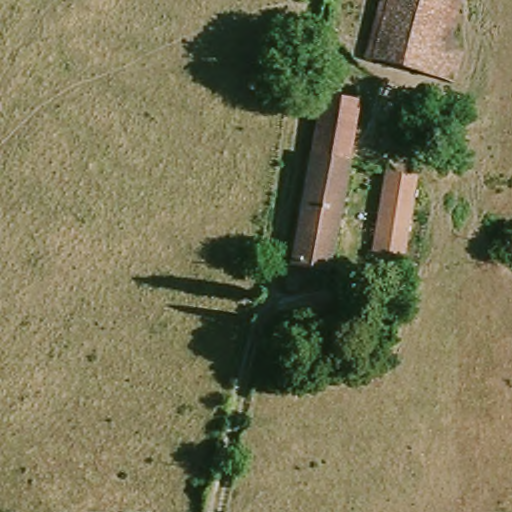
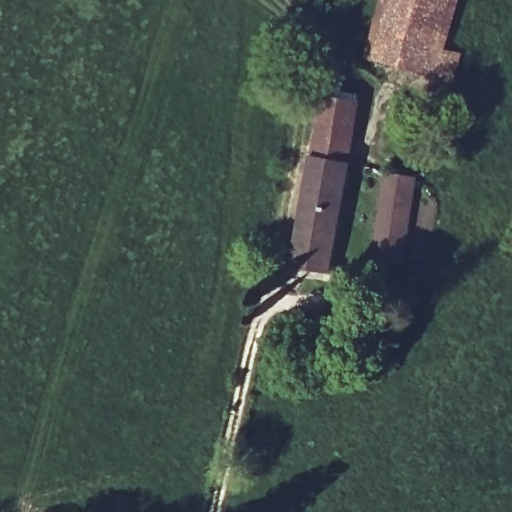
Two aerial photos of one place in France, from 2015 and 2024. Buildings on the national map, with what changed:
unchanged [(396,0),(470,0),(460,40),(475,45),(464,79),(381,51),(396,0)]
unchanged [(328,93),(371,100),(360,159),(320,153),(328,93)]
unchanged [(413,123),(434,126),(430,150),(409,146),(413,123)]
unchanged [(343,268),(301,264),(320,153),(360,159),(343,268)]
unchanged [(430,170),(415,258),(403,257),(400,273),(368,269),(375,240),(391,243),(406,166),(430,170)]

